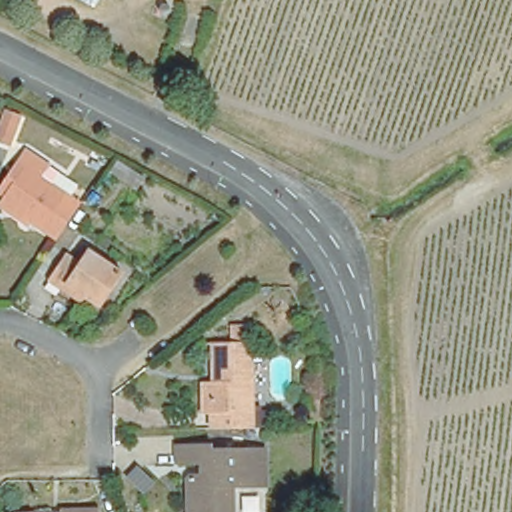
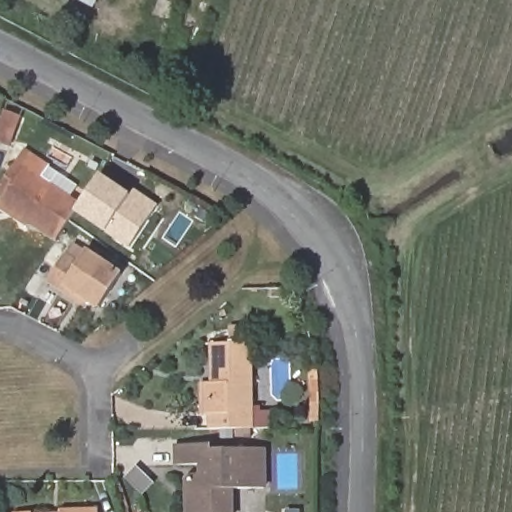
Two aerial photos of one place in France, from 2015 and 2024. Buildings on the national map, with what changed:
unchanged [(19,118),(6,148),(0,146),(0,117),(2,112),(19,118)]
unchanged [(0,207),(0,196),(21,163),(15,159),(24,148),(46,162),(40,173),(80,198),(55,234),(28,216),(24,223),(0,207)]
demolished [(137,189),(122,181),(129,169),(145,177),(137,189)]
new [(130,248),(106,232),(75,211),(100,173),(129,193),(132,187),(158,205),(130,248)]
unchanged [(74,298),(48,278),(66,253),(79,263),(89,250),(122,274),(97,308),(84,298),(80,303),(74,298)]
unchanged [(246,425),(243,425),(207,425),(207,411),(204,411),(195,410),(195,381),(205,381),(209,381),(209,374),(210,340),(245,339),(246,408),(267,408),(267,425),(246,425)]
unchanged [(313,374),(313,375),(314,423),(305,423),(305,375),(313,374)]
unchanged [(175,495),(175,480),(181,472),(190,471),(190,459),(166,460),(165,440),(197,439),(197,442),(205,442),(255,442),(255,482),(221,483),(221,512),(176,512),(176,511),(175,495)]
unchanged [(97,512),(56,512),(96,510),(97,512)]

